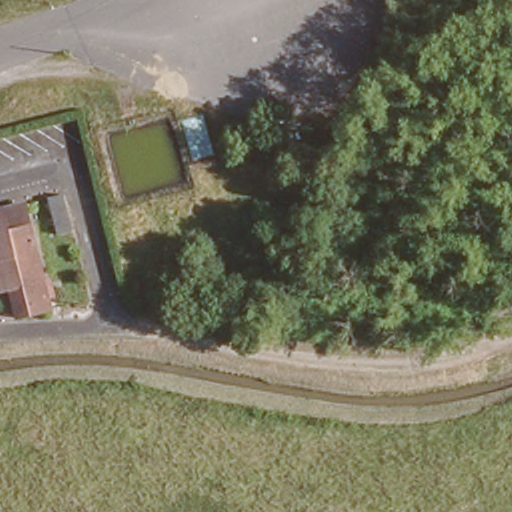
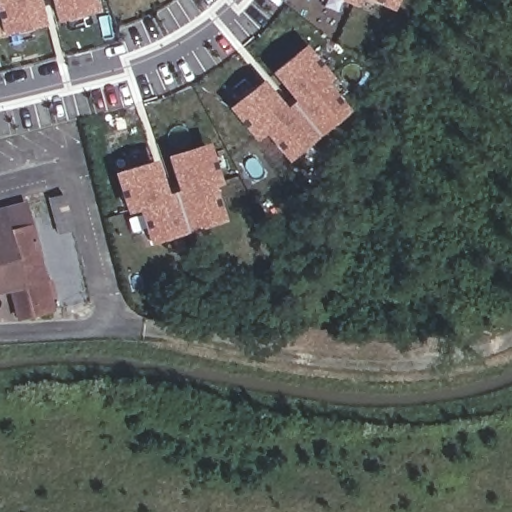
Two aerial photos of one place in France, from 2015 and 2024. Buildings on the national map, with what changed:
new [(10,26),(4,0),(43,0),(47,17),(10,26)]
new [(65,13),(62,0),(100,0),(101,5),(65,13)]
new [(358,0),(363,0),(362,2),(358,0)]
new [(384,0),(403,0),(399,7),(384,0)]
new [(293,158),(271,129),(262,136),(238,107),(267,84),(290,113),(304,101),(282,73),(312,49),(336,79),(329,84),(351,112),(293,158)]
new [(224,219),(153,239),(143,205),(132,209),(122,172),(157,162),(167,197),(185,191),(175,157),(211,146),(222,182),(215,184),(224,219)]
unchanged [(40,198),(58,194),(65,229),(47,233),(40,198)]
unchanged [(18,324),(13,300),(0,303),(0,227),(5,226),(2,207),(21,204),(24,220),(31,219),(52,317),(30,321),(18,324)]
new [(0,227),(0,208),(2,207),(5,226),(0,227)]

